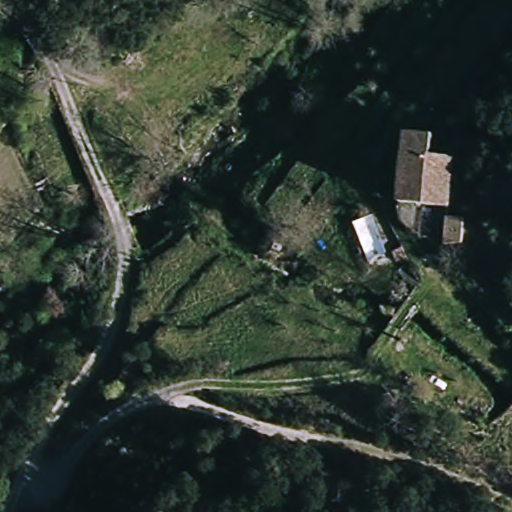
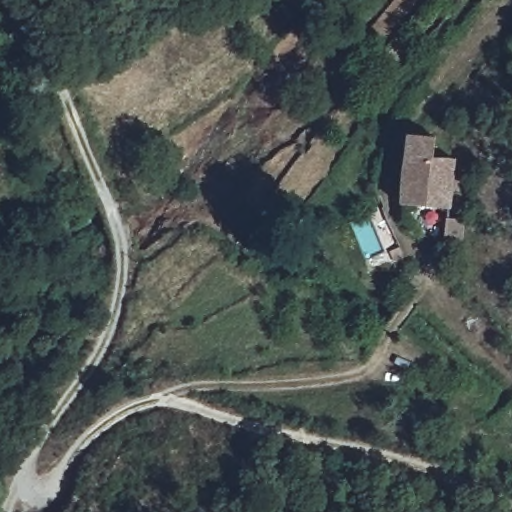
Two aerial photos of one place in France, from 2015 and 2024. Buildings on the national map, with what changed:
unchanged [(422,200),(399,196),(410,125),(433,129),(429,154),(422,200)]
unchanged [(422,200),(429,154),(462,158),(455,206),(422,200)]

